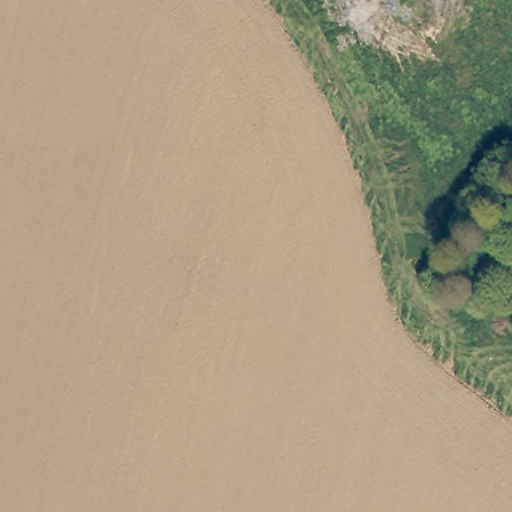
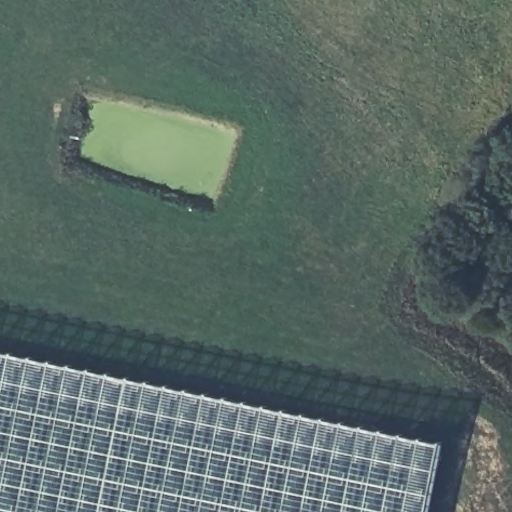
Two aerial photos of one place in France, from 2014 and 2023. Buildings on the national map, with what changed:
new [(445,445),(431,512),(0,512),(0,351),(445,445)]

